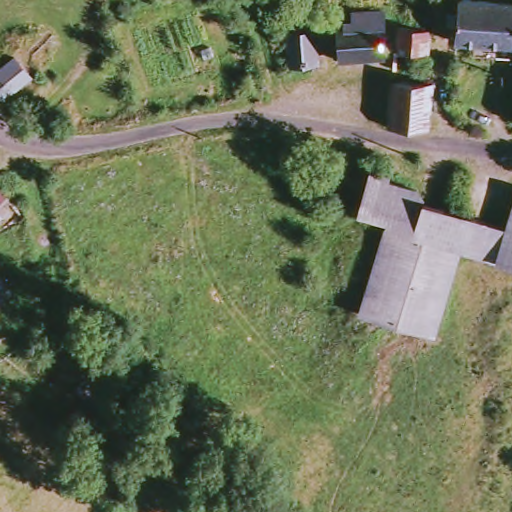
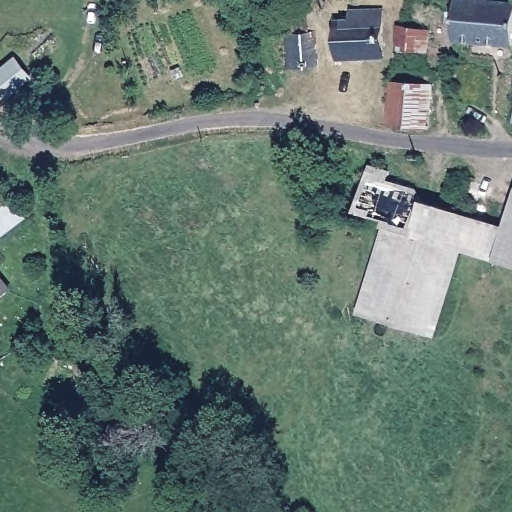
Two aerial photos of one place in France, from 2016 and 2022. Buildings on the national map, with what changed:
unchanged [(510,46),(455,38),(459,0),(473,0),(512,4),(510,46)]
unchanged [(334,60),(327,18),(380,13),(382,55),(334,60)]
unchanged [(397,22),(430,26),(428,46),(395,44),(397,22)]
unchanged [(31,74),(8,93),(0,83),(0,67),(14,55),(31,74)]
unchanged [(390,128),(393,83),(434,86),(430,132),(390,128)]
unchanged [(382,228),(358,221),(372,173),(390,176),(389,186),(419,194),(423,206),(502,227),(512,191),(512,268),(457,256),(432,336),(360,318),(382,228)]
unchanged [(5,193),(0,197),(0,187),(5,193)]
unchanged [(10,291),(0,298),(0,278),(10,291)]

